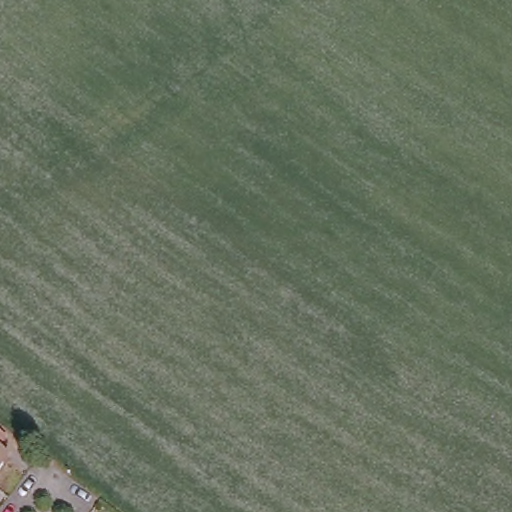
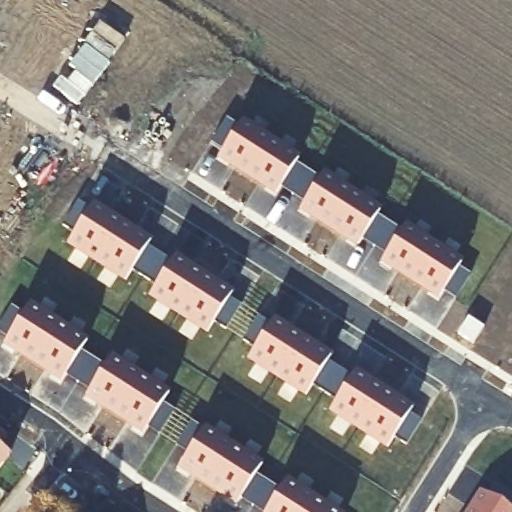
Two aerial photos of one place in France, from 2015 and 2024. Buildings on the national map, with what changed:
new [(4,0),(0,6),(0,0),(4,0)]
new [(443,292),(438,300),(379,264),(385,254),(362,240),(356,249),(299,211),(304,204),(281,189),(274,197),(216,160),(222,151),(211,145),(227,120),(238,129),(242,122),(299,158),(295,165),(319,180),(324,172),(381,209),(376,216),(400,231),(405,224),(463,260),(458,267),(471,276),(456,300),(443,292)]
new [(213,325),(206,335),(147,299),(154,287),(131,272),(124,283),(66,247),(73,235),(63,228),(76,206),(87,215),(93,205),(151,241),(146,248),(171,263),(175,257),(233,292),(229,299),(241,306),(226,330),(213,325)]
new [(145,430),(141,436),(84,400),(88,393),(64,377),(60,385),(3,347),(7,340),(0,336),(0,326),(10,308),(22,315),(30,305),(88,341),(80,352),(104,367),(111,356),(168,393),(161,404),(174,412),(159,436),(145,430)]
new [(393,439),(385,450),(329,413),(336,401),(311,387),(304,398),(246,361),(253,349),(243,341),(258,317),(270,325),(274,319),(331,355),(326,363),(350,379),(356,370),(413,407),(409,414),(421,422),(406,445),(393,439)]
new [(241,500),(236,508),(177,470),(187,454),(176,448),(191,423),(203,431),(205,428),(261,463),(254,475),(279,490),(286,478),(339,512),(258,512),(241,500)]
unchanged [(1,437),(0,439),(0,437),(1,437)]
unchanged [(4,457),(0,462),(0,454),(4,457)]
new [(481,491),(488,495),(494,483),(512,495),(512,509),(512,512),(467,512),(481,491)]

